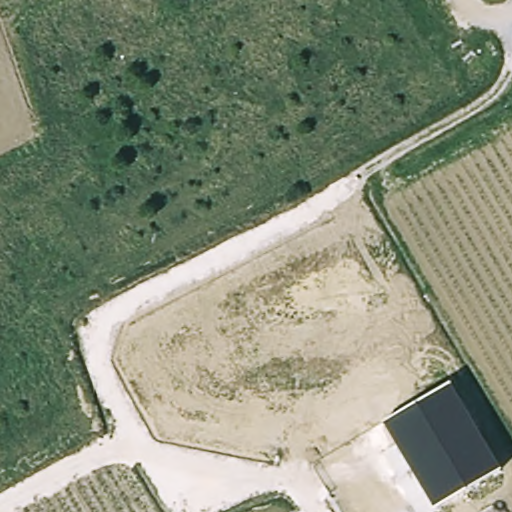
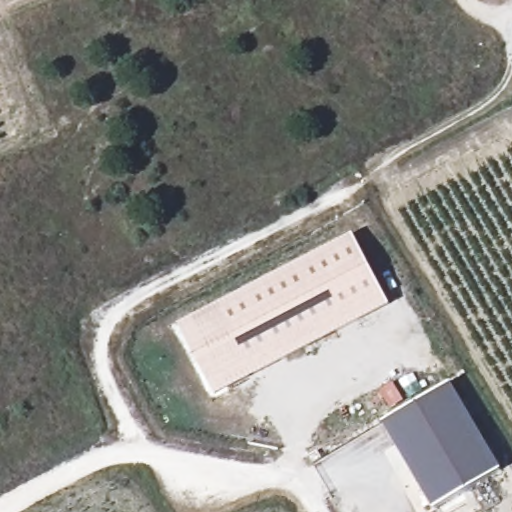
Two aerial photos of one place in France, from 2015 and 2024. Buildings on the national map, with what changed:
new [(352,235),(389,307),(215,397),(178,325),(352,235)]
unchanged [(384,424),(451,386),(500,472),(435,511),(384,424)]

